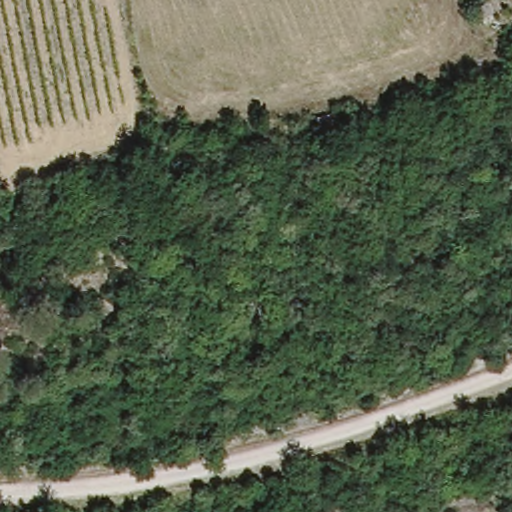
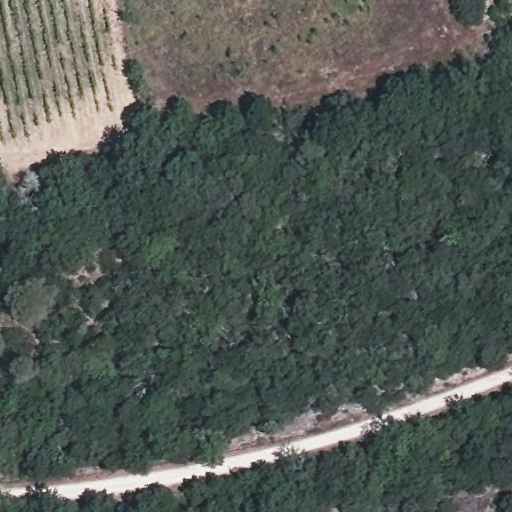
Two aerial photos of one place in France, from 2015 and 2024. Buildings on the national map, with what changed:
unchanged [(469,6),(482,13),(477,21),(464,13),(469,6)]
unchanged [(309,112),(329,106),(336,126),(314,131),(309,112)]

